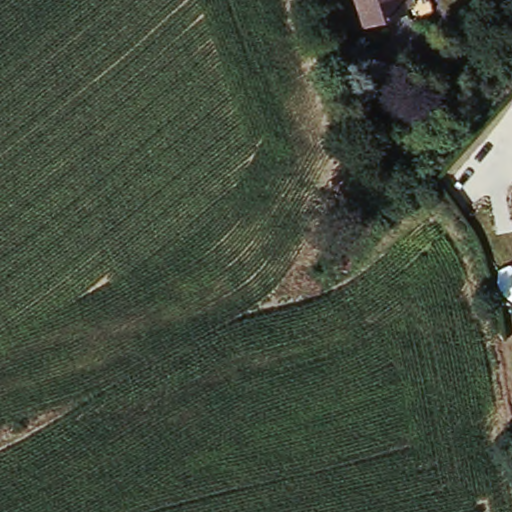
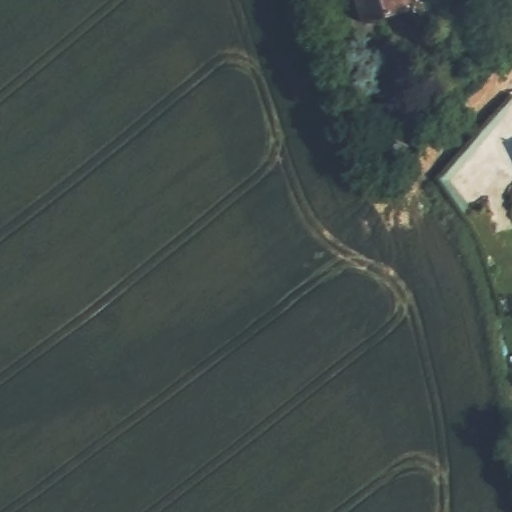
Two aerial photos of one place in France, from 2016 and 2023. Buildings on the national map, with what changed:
unchanged [(355,0),(408,0),(410,8),(403,10),(384,17),(362,24),(355,0)]

